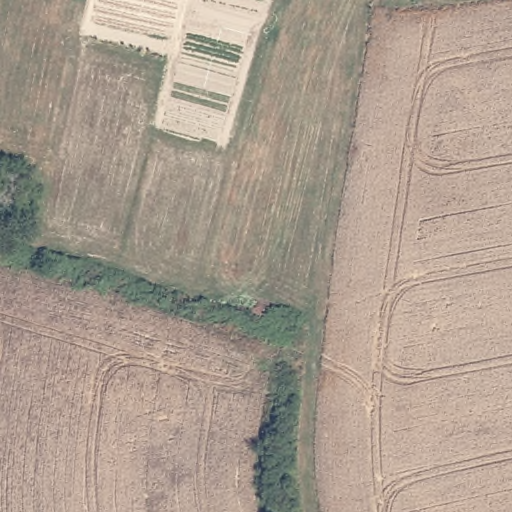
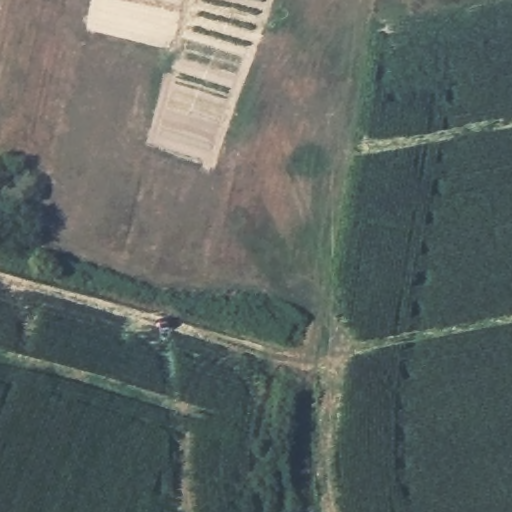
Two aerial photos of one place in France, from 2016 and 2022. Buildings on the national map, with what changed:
[]

